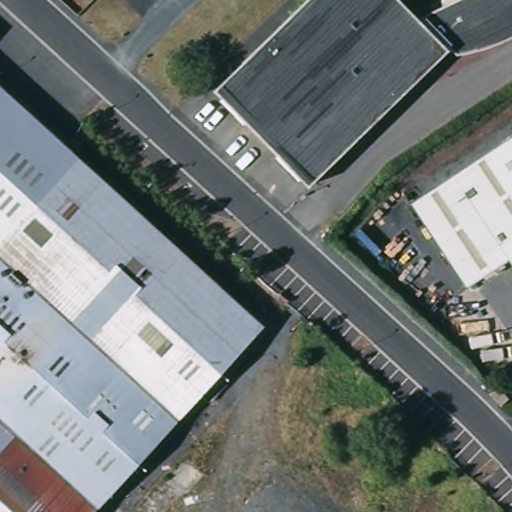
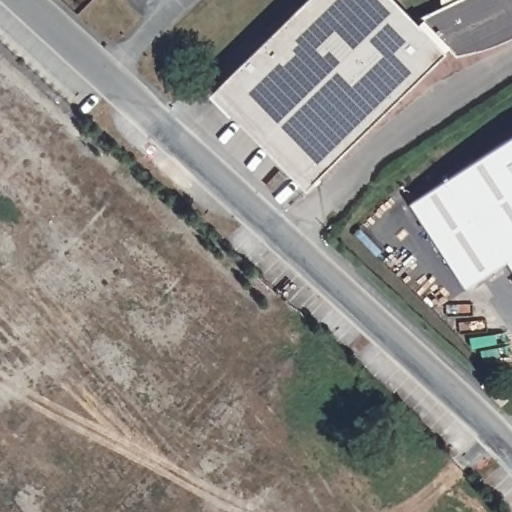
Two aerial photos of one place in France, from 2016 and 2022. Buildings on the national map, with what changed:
unchanged [(436,0),(512,0),(512,32),(494,41),(481,47),(460,55),(445,59),(406,95),(391,110),(305,187),(208,85),(296,0),(390,0),(411,22),(417,16),(435,7),(436,0)]
demolished [(140,215),(264,326),(89,512),(0,512),(0,87),(140,215)]
unchanged [(411,204),(512,137),(512,266),(509,262),(467,288),(411,204)]

